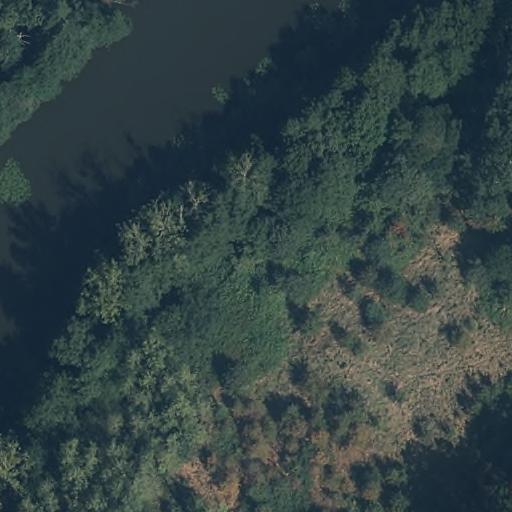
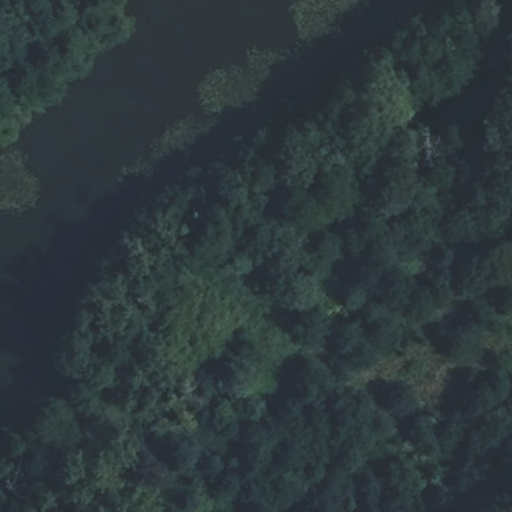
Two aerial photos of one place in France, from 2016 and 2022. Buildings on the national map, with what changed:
[]

